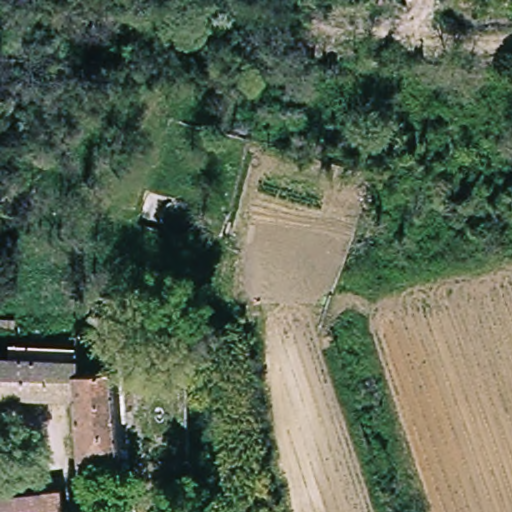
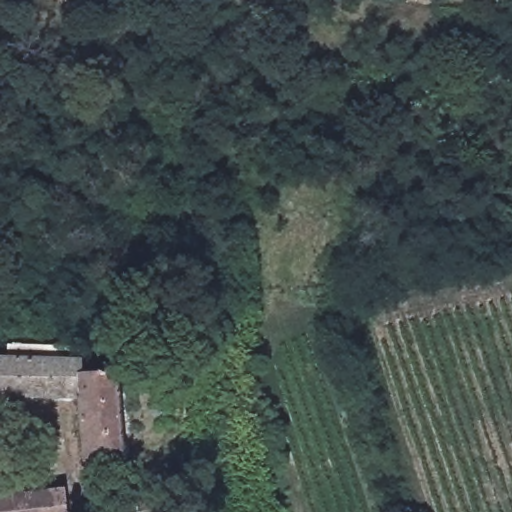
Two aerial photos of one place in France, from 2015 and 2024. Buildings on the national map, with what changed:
unchanged [(70,357),(83,357),(84,370),(117,368),(123,459),(85,462),(78,398),(18,397),(0,397),(0,356),(12,356),(12,346),(20,346),(69,345),(70,357)]
unchanged [(69,488),(71,512),(0,512),(0,494),(69,488)]

